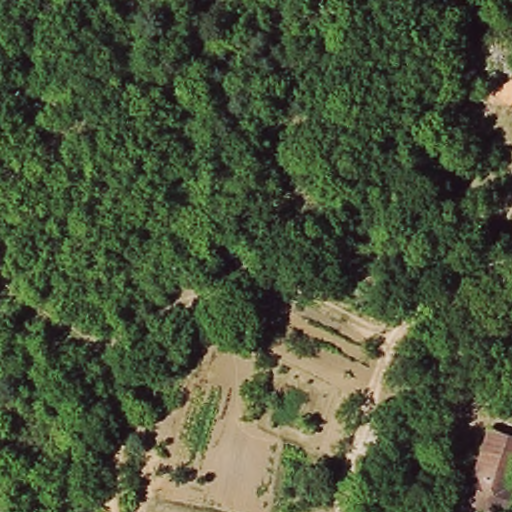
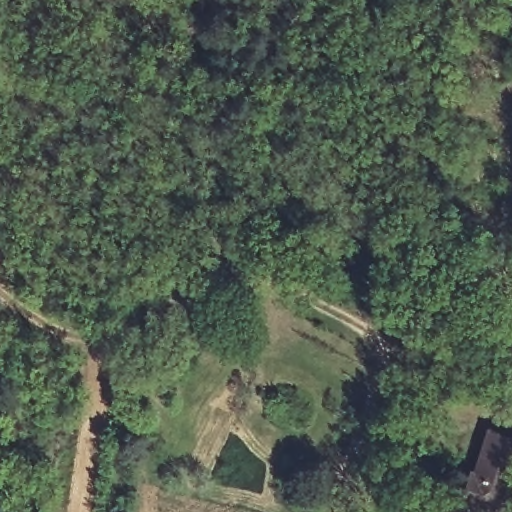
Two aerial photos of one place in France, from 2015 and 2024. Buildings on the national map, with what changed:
unchanged [(512,440),(512,471),(510,479),(512,479),(512,512),(459,512),(470,471),(474,472),(485,434),(512,440)]

